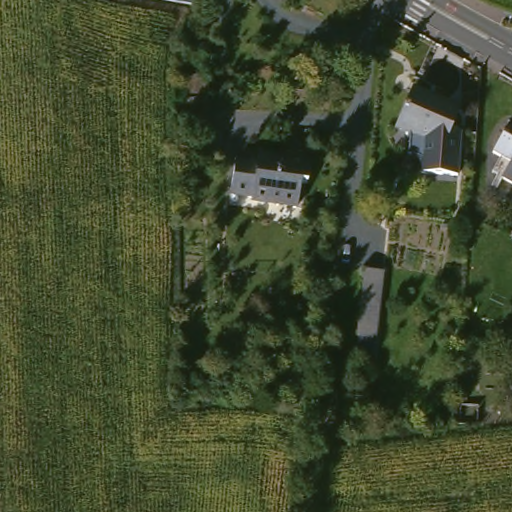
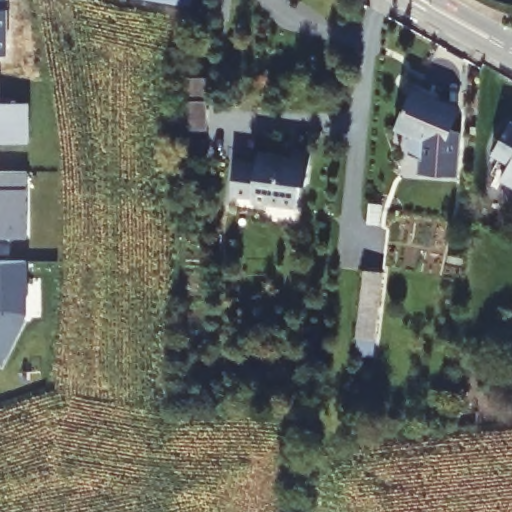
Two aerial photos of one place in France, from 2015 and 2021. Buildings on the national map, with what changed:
new [(6,0),(6,53),(0,53),(0,0),(6,0)]
unchanged [(133,0),(190,0),(188,8),(133,0)]
unchanged [(206,78),(207,131),(179,131),(179,78),(206,78)]
unchanged [(458,108),(451,129),(459,130),(456,178),(422,176),(422,161),(409,160),(408,136),(394,131),(413,87),(458,108)]
new [(27,102),(28,140),(0,140),(0,102),(27,102)]
unchanged [(511,122),(512,123),(512,160),(495,151),(511,122)]
demolished [(199,131),(199,184),(172,184),(171,131),(199,131)]
unchanged [(293,159),(313,164),(307,190),(303,189),(298,209),(296,215),(247,203),(249,198),(230,193),(239,163),(258,167),(260,157),(291,165),(293,159)]
new [(26,172),(26,237),(6,237),(6,240),(0,240),(0,172),(26,172)]
new [(26,259),(26,312),(1,361),(0,360),(0,259),(26,259)]
unchanged [(376,345),(353,345),(361,276),(384,277),(376,345)]

